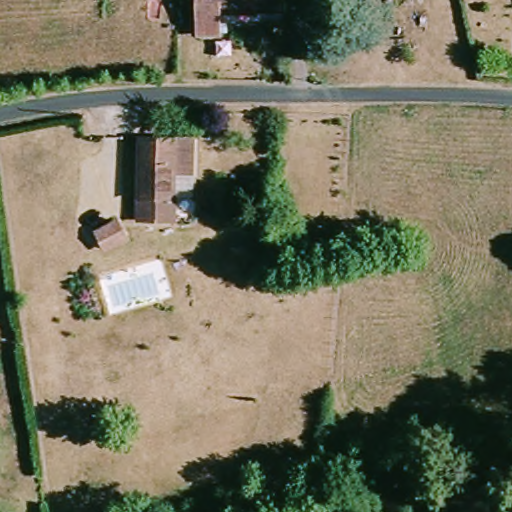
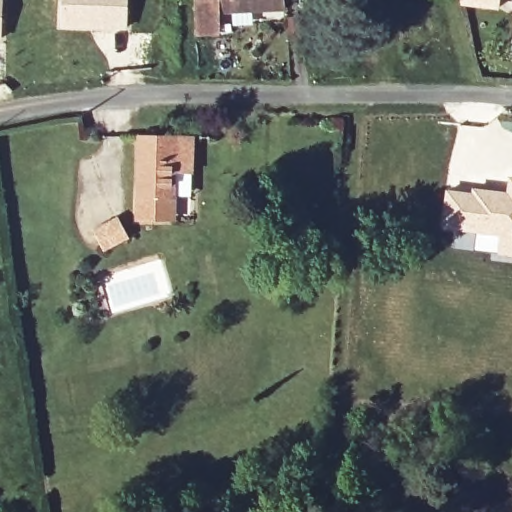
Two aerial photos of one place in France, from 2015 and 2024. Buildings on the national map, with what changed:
new [(0,0),(2,0),(0,40),(0,0)]
new [(128,0),(126,30),(61,26),(61,0),(128,0)]
unchanged [(209,47),(204,0),(229,0),(219,1),(220,47),(209,47)]
unchanged [(231,46),(220,47),(219,1),(229,0),(293,0),(294,15),(232,21),(231,46)]
unchanged [(301,27),(301,7),(335,4),(337,24),(338,46),(303,49),(301,27)]
unchanged [(150,217),(150,195),(151,172),(151,135),(199,137),(198,168),(195,197),(183,196),(181,218),(150,217)]
new [(442,229),(445,192),(469,195),(470,189),(492,192),(490,203),(503,205),(507,180),(512,180),(512,255),(498,254),(500,235),(442,229)]
unchanged [(98,237),(121,227),(126,224),(133,244),(129,246),(106,255),(98,237)]

